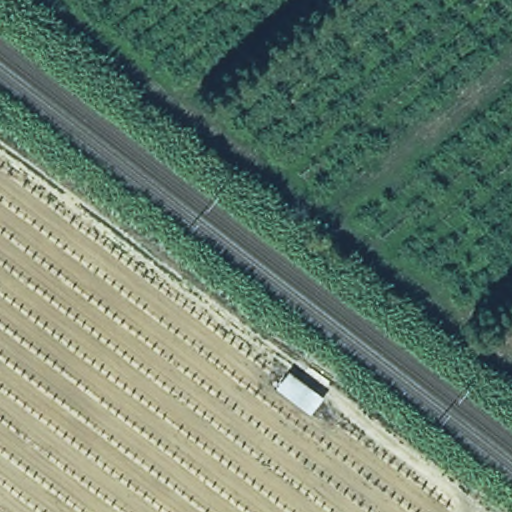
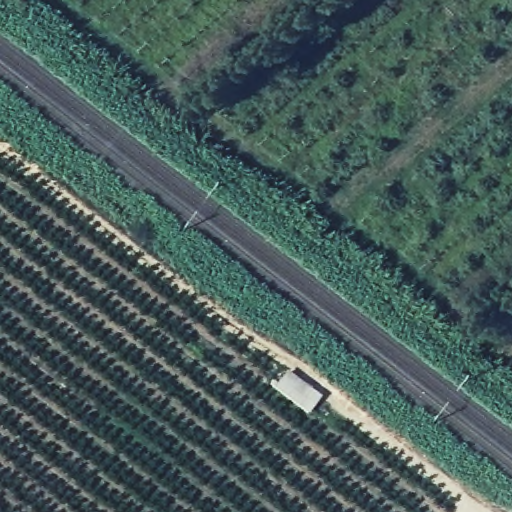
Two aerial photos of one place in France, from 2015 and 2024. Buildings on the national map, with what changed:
unchanged [(281,375),(316,400),(305,414),(272,391),(281,375)]

